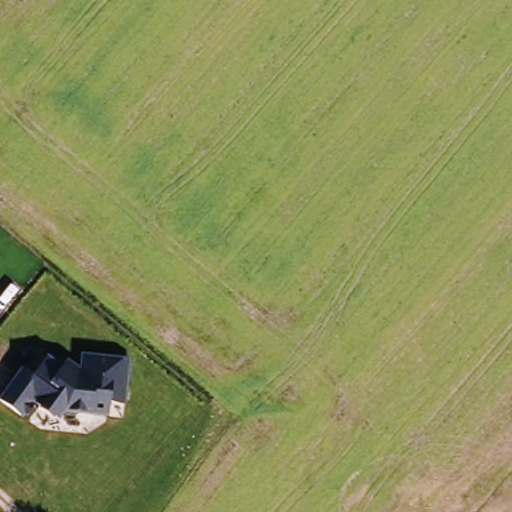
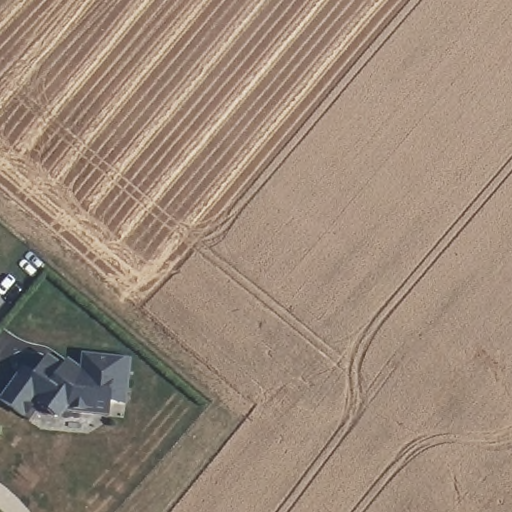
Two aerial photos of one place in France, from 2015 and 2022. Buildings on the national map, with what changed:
unchanged [(22,368),(33,376),(45,359),(61,369),(66,361),(80,371),(80,356),(129,361),(125,405),(110,403),(107,420),(66,413),(60,424),(37,408),(27,421),(0,403),(0,397),(22,368)]

